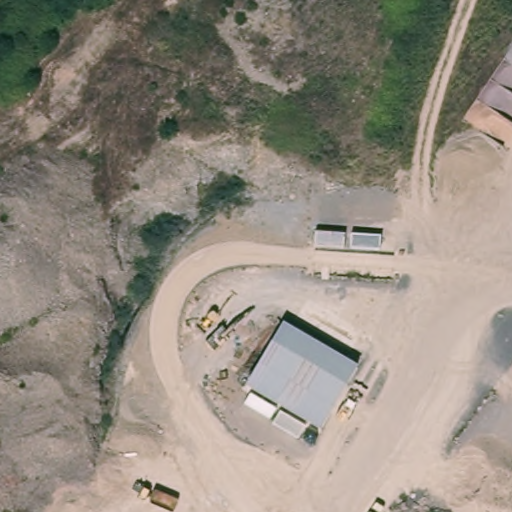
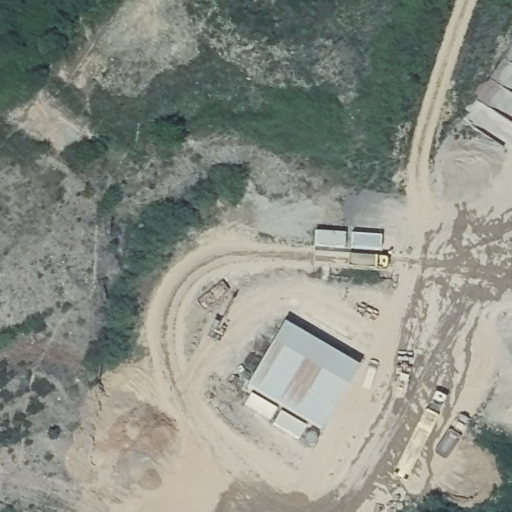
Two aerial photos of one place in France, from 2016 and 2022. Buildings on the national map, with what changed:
unchanged [(361,363),(321,426),(247,382),(284,320),(361,363)]

